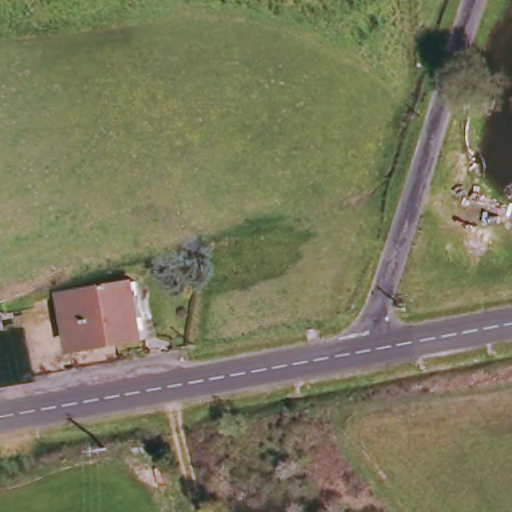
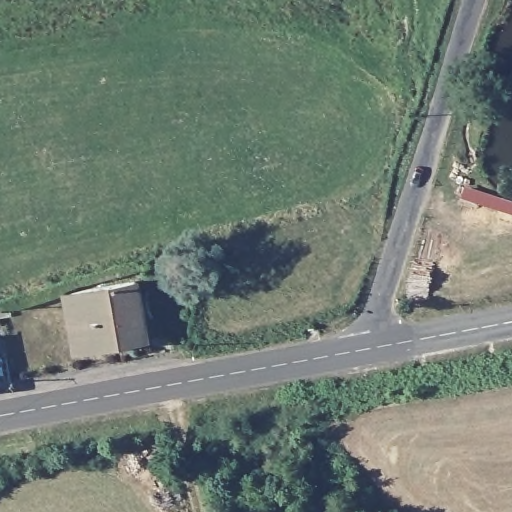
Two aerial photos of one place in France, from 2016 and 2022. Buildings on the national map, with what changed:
unchanged [(148,338),(80,350),(73,292),(141,283),(148,338)]
unchanged [(13,315),(2,317),(3,322),(0,323),(0,312),(13,309),(13,315)]

